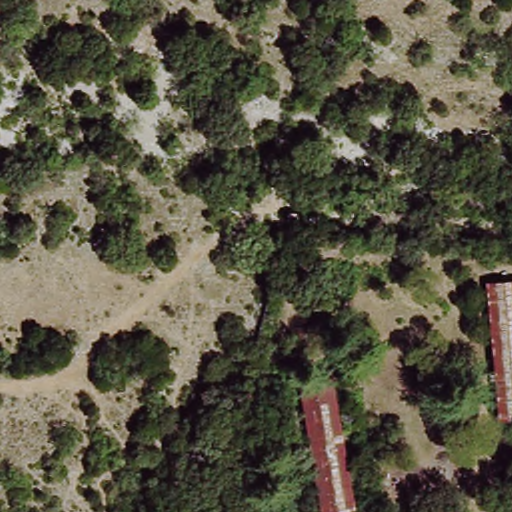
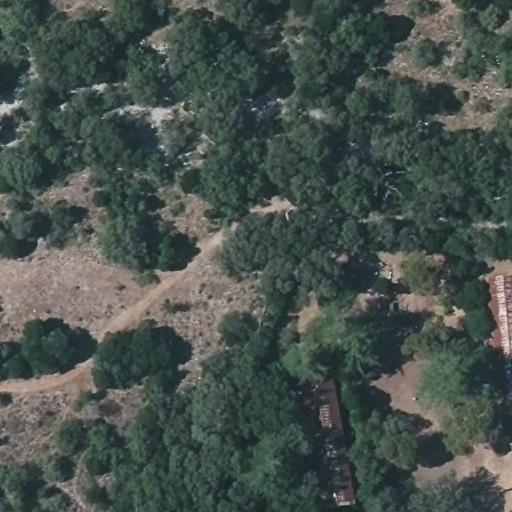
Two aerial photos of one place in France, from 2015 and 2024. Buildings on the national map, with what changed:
unchanged [(485,281),(512,279),(512,416),(496,417),(485,281)]
unchanged [(318,512),(295,371),(331,366),(355,509),(335,512),(318,512)]

